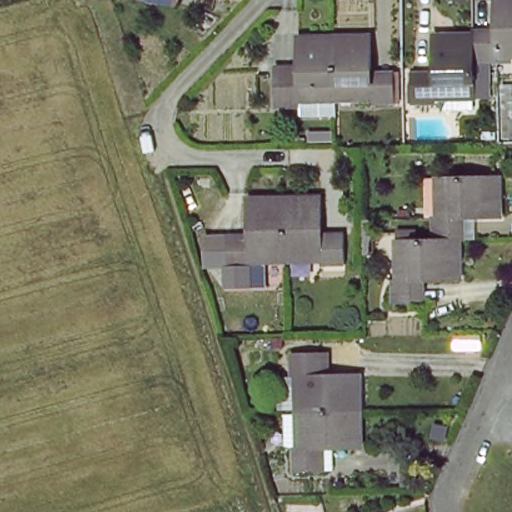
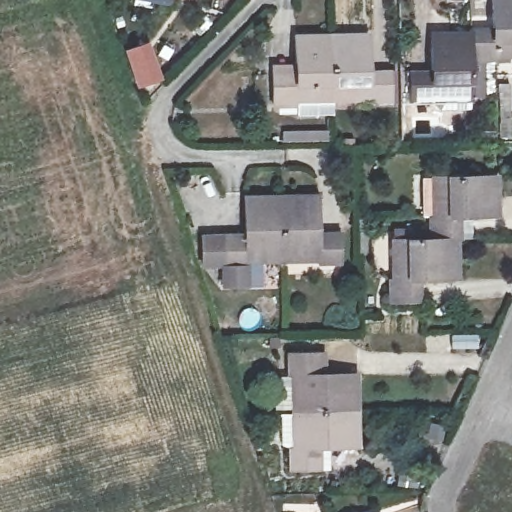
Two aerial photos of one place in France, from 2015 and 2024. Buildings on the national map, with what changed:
unchanged [(490,31),(491,0),(512,0),(512,54),(492,54),(492,63),(480,63),(469,62),(467,94),(430,95),(430,103),(411,103),(411,75),(430,74),(432,39),(469,40),(469,30),(490,31)]
unchanged [(370,34),(370,75),(390,76),(390,105),(370,106),(369,98),(331,100),(298,101),(298,109),(276,110),(277,79),(295,79),(295,37),(331,36),(370,34)]
new [(158,45),(169,79),(135,89),(125,55),(158,45)]
unchanged [(439,210),(439,174),(497,174),(496,212),(463,212),(462,235),(457,235),(457,278),(420,278),(419,307),(387,307),(389,278),(394,277),(396,236),(433,235),(434,210),(439,210)]
unchanged [(244,257),(243,267),(222,267),(224,232),(244,232),(244,194),(287,195),(321,194),(320,234),(341,234),(340,268),(319,267),(318,258),(287,258),(244,257)]
unchanged [(316,356),(317,374),(358,374),(357,412),(357,449),(316,450),(316,470),(284,469),(283,448),(292,447),(292,413),(292,379),(283,379),(283,356),(316,356)]

